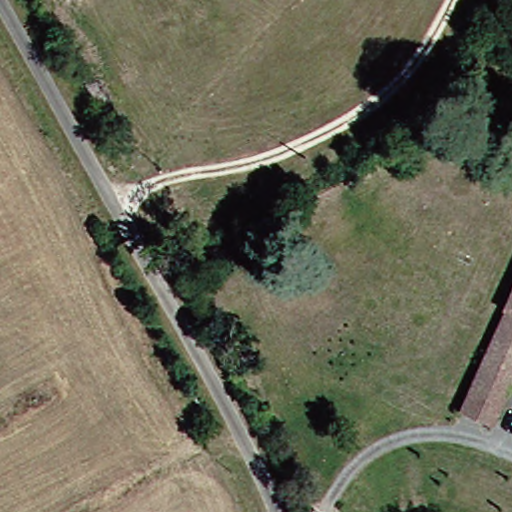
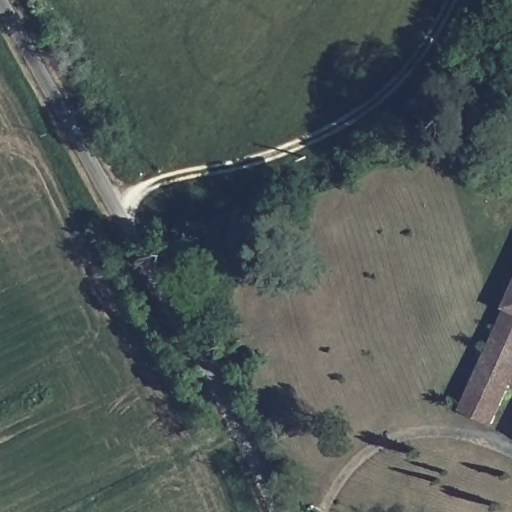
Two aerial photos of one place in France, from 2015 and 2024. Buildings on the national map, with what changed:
unchanged [(495,313),(492,310),(512,266),(512,357),(481,341),(495,313)]
unchanged [(512,357),(512,366),(504,383),(471,366),(481,341),(512,357)]
unchanged [(485,428),(450,411),(471,366),(504,383),(485,428)]

